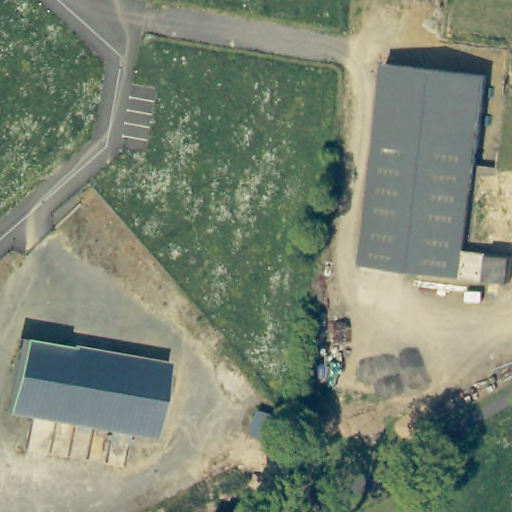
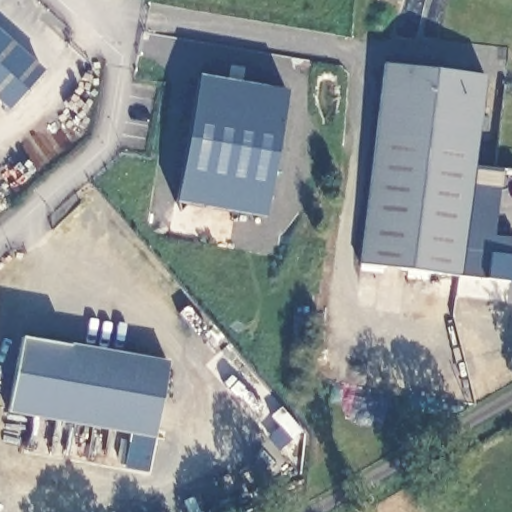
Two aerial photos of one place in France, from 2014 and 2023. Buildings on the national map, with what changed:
new [(43,71),(7,111),(0,105),(0,34),(43,71)]
unchanged [(360,269),(384,68),(484,80),(463,255),(511,261),(508,287),(360,269)]
new [(262,219),(171,205),(193,80),(281,94),(262,219)]
unchanged [(152,442),(4,417),(16,344),(165,368),(152,442)]

